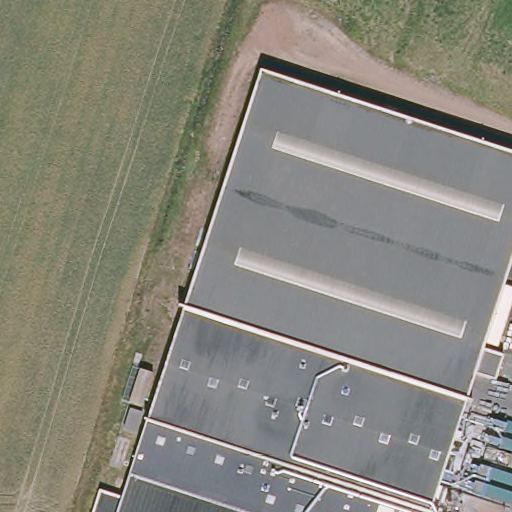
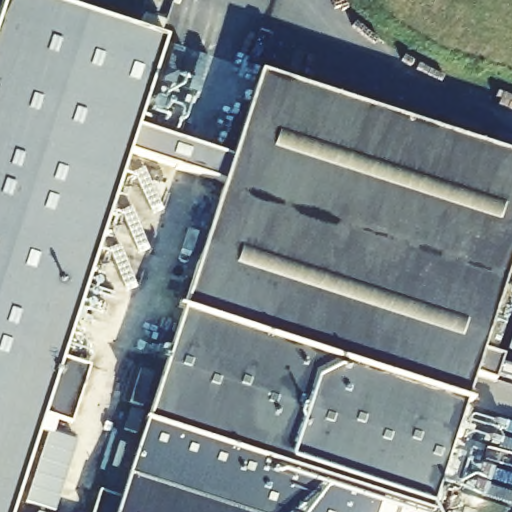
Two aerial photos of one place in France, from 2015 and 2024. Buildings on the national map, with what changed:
new [(176,49),(153,131),(226,154),(218,180),(145,157),(45,512),(0,512),(0,58),(18,3),(176,49)]
unchanged [(512,153),(512,256),(482,348),(502,356),(494,380),(475,373),(465,400),(184,309),(258,70),(512,153)]
unchanged [(429,512),(278,512),(128,462),(176,307),(465,400),(429,512)]
demolished [(112,512),(128,462),(278,512),(112,512)]
new [(112,512),(128,462),(278,512),(112,512)]

